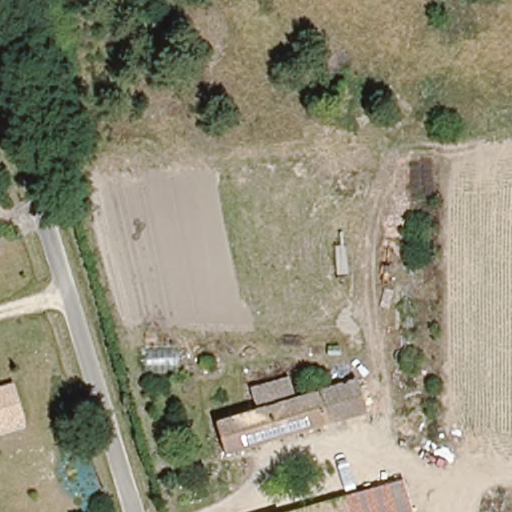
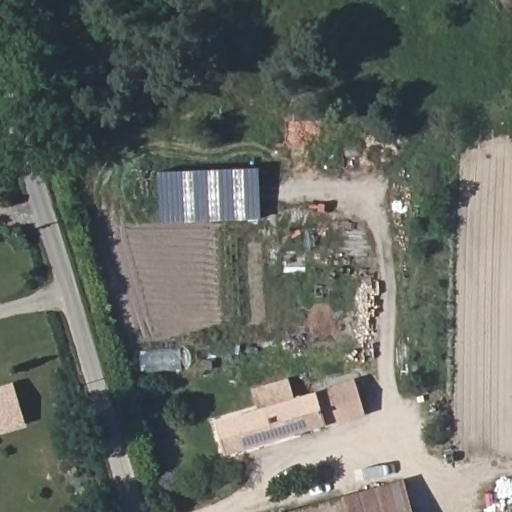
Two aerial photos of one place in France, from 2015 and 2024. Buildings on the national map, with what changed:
new [(259,169),(261,219),(160,222),(159,172),(259,169)]
unchanged [(227,454),(220,421),(264,409),(258,389),(295,380),(295,382),(300,399),(361,383),(368,407),(370,413),(328,426),(227,454)]
unchanged [(14,386),(25,428),(0,435),(0,390),(14,386)]
new [(404,481),(413,512),(353,512),(348,496),(404,481)]
unchanged [(348,496),(349,499),(353,512),(293,512),(348,496)]

